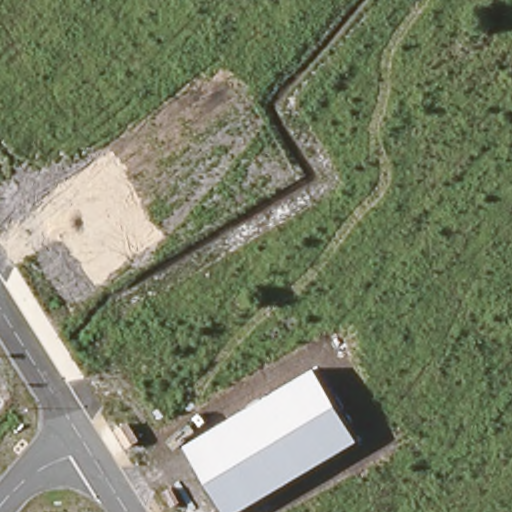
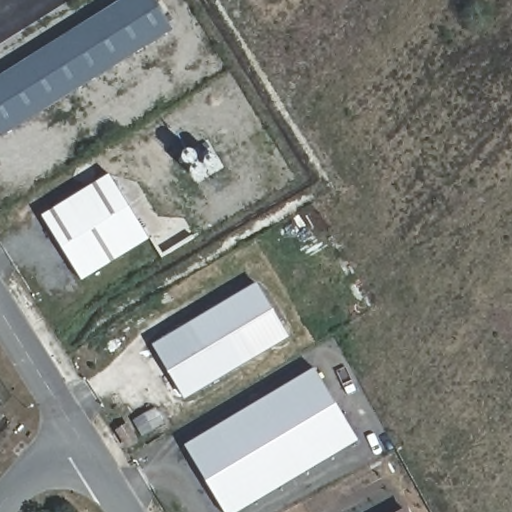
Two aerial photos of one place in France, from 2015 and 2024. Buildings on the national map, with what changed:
new [(127,0),(154,0),(174,32),(2,140),(0,136),(0,79),(127,0)]
new [(83,280),(43,216),(110,174),(150,239),(83,280)]
new [(187,400),(154,345),(258,283),(290,336),(187,400)]
unchanged [(226,512),(186,445),(316,365),(360,441),(242,512),(226,512)]
new [(409,512),(397,512),(406,507),(409,512)]

